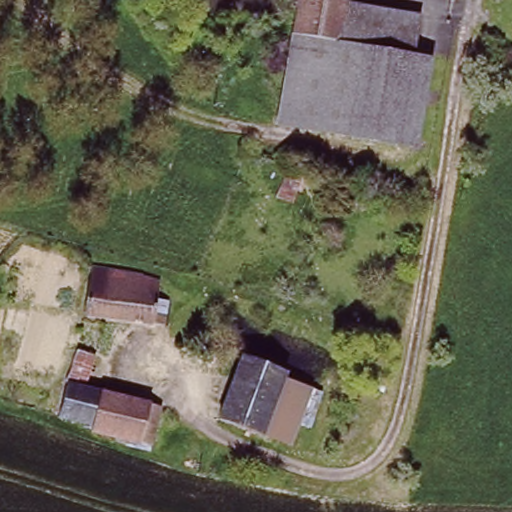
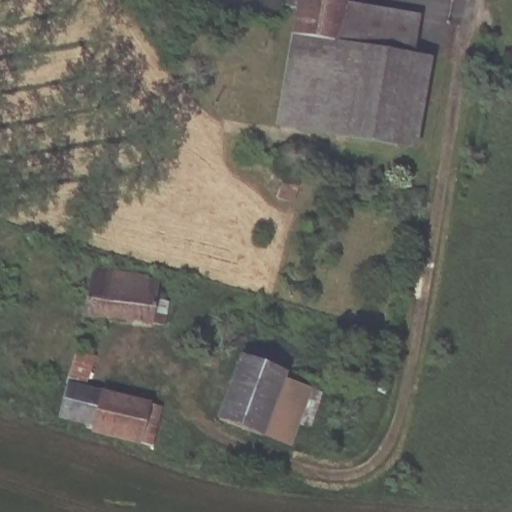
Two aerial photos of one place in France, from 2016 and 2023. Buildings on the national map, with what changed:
unchanged [(294,35),(299,6),(290,5),(291,0),(340,0),(353,2),(344,44),(294,35)]
unchanged [(422,16),(414,55),(344,44),(353,2),(422,16)]
unchanged [(414,55),(432,59),(417,145),(396,142),(278,121),(294,35),(344,44),(414,55)]
unchanged [(165,278),(162,298),(167,300),(163,325),(85,311),(92,265),(165,278)]
unchanged [(283,374),(263,430),(221,415),(244,352),(286,367),(283,374)]
unchanged [(291,440),(263,430),(283,374),(312,385),(291,440)]
unchanged [(165,401),(157,441),(98,428),(100,420),(65,412),(71,381),(165,401)]

